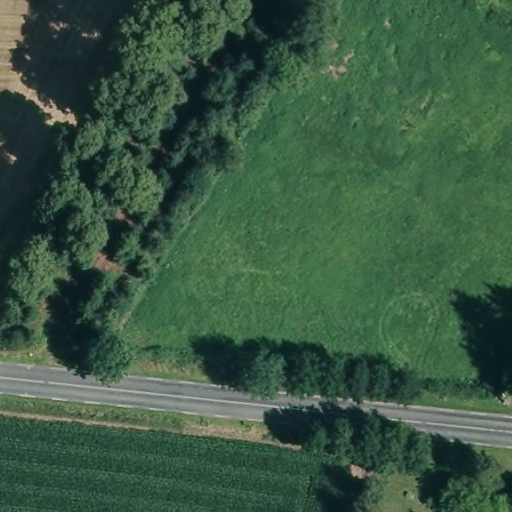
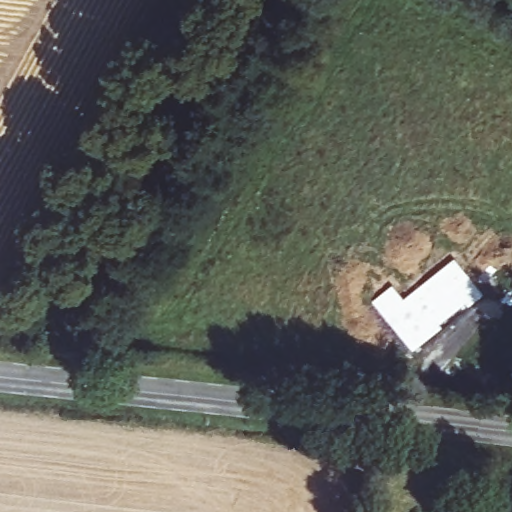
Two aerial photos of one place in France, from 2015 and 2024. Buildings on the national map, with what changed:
new [(484,295),(467,308),(463,304),(437,325),(440,329),(412,353),(369,303),(390,284),(403,299),(455,259),(484,295)]

